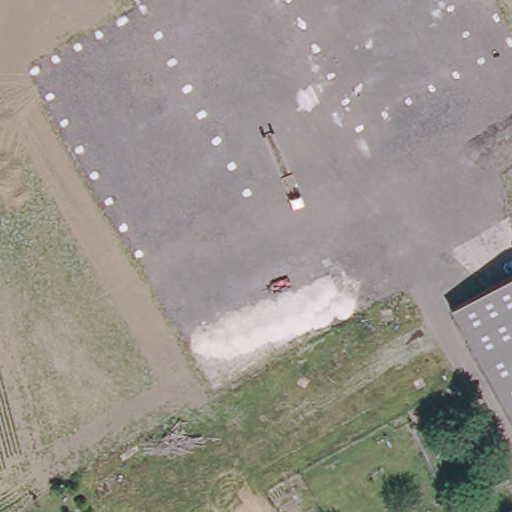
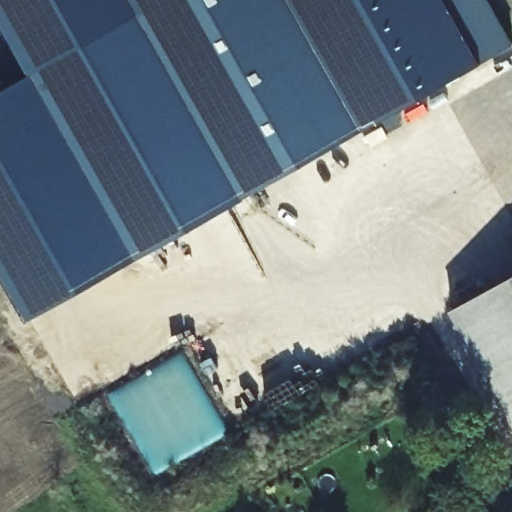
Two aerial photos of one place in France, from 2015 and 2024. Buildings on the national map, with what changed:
new [(0,50),(0,0),(499,0),(512,24),(512,46),(24,323),(0,282),(0,93),(17,83),(0,50)]
unchanged [(457,311),(512,280),(512,408),(457,311)]

